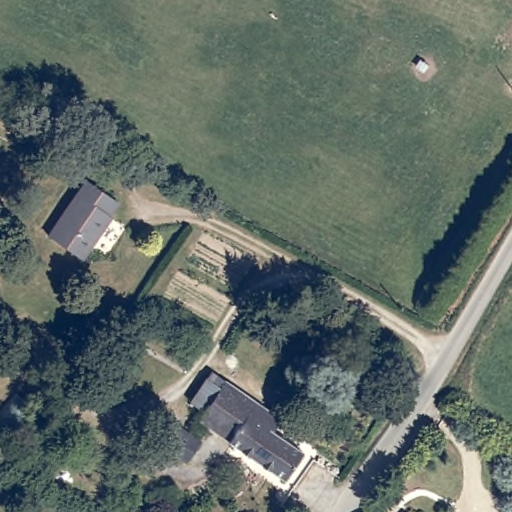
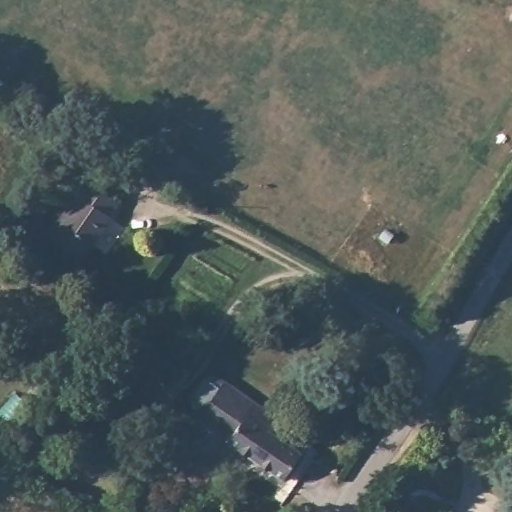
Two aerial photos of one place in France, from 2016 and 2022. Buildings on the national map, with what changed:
unchanged [(114,197),(106,209),(110,212),(80,257),(46,235),(84,177),(114,197)]
unchanged [(201,420),(228,382),(244,393),(285,422),(277,435),(321,467),(312,480),(297,468),(287,482),(201,420)]
unchanged [(189,433),(175,453),(154,432),(151,430),(149,427),(148,418),(152,416),(156,416),(164,416),(189,433)]

